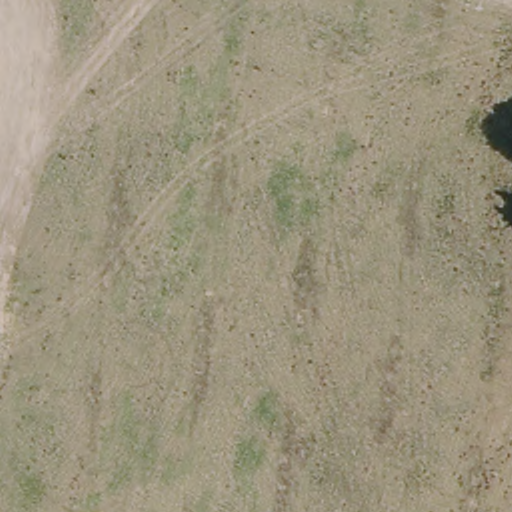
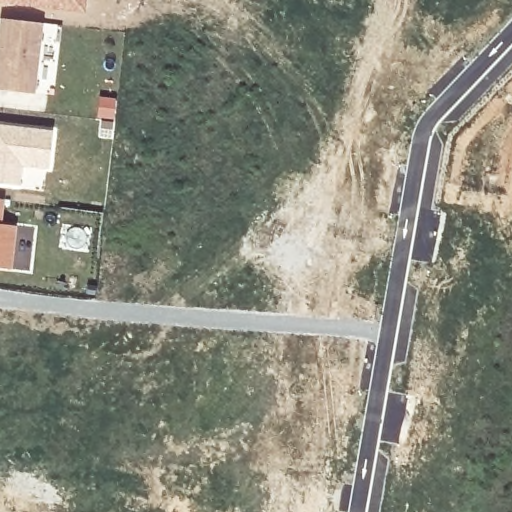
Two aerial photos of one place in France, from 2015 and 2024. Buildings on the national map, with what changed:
new [(81,13),(0,4),(0,0),(82,0),(81,13)]
new [(0,18),(44,23),(36,93),(0,90),(0,18)]
new [(117,97),(113,138),(97,136),(99,95),(117,97)]
new [(50,171),(24,168),(22,186),(0,183),(0,122),(56,129),(50,171)]
new [(17,225),(12,269),(0,268),(0,198),(5,199),(2,223),(17,225)]

